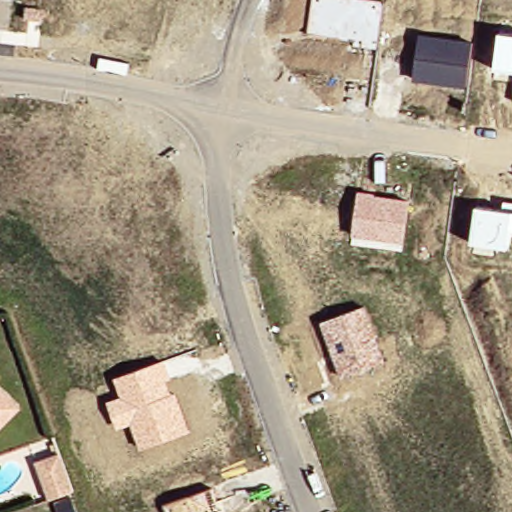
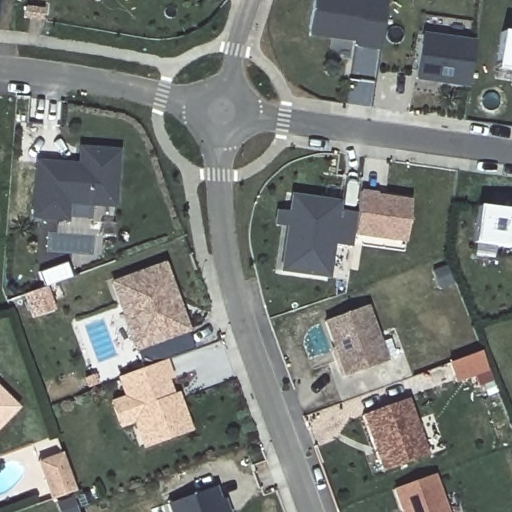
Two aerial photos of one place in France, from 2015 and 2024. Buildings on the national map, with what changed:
unchanged [(379,50),(355,47),(355,43),(307,36),(312,0),(386,0),(379,50)]
new [(512,73),(494,70),(499,32),(512,34),(512,73)]
unchanged [(472,41),(468,89),(413,80),(419,35),(472,41)]
new [(115,211),(68,207),(67,224),(29,222),(34,160),(76,164),(78,147),(120,150),(115,211)]
unchanged [(409,199),(404,243),(353,235),(359,191),(409,199)]
new [(285,229),(273,227),(275,211),(286,213),(289,195),(341,201),(340,211),(356,214),(353,235),(351,248),(333,246),(329,280),(279,275),(285,229)]
new [(512,234),(507,234),(506,247),(467,242),(475,206),(503,209),(504,201),(512,203),(512,234)]
new [(189,332),(185,333),(191,350),(165,359),(140,368),(108,282),(163,262),(189,332)]
unchanged [(385,363),(340,377),(321,323),(366,305),(385,363)]
unchanged [(172,380),(166,382),(170,395),(178,393),(191,433),(141,450),(132,425),(118,429),(109,401),(119,397),(115,379),(165,359),(172,380)]
unchanged [(0,419),(0,399),(1,400),(10,408),(0,419)]
new [(380,473),(360,415),(407,400),(427,456),(380,473)]
new [(65,453),(79,491),(56,500),(42,461),(65,453)]
new [(439,497),(455,492),(462,512),(402,512),(393,490),(432,477),(439,497)]
unchanged [(170,512),(167,503),(215,486),(225,512),(170,512)]

